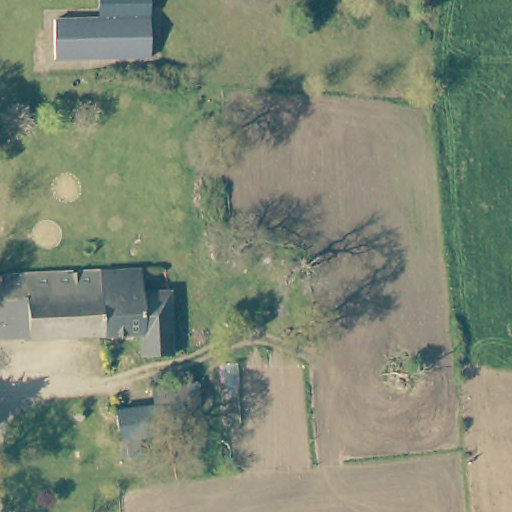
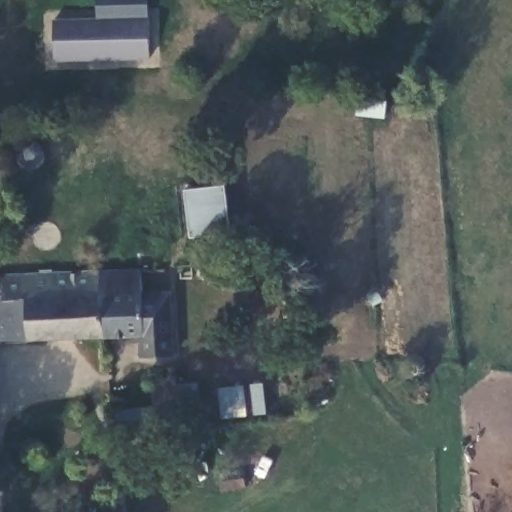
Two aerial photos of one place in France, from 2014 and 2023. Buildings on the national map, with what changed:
unchanged [(95,0),(145,0),(145,19),(95,19),(95,0)]
unchanged [(145,59),(50,59),(50,19),(95,19),(145,19),(145,59)]
new [(232,235),(192,239),(185,187),(226,183),(232,235)]
unchanged [(148,269),(150,294),(174,293),(177,354),(145,356),(144,333),(111,335),(105,271),(148,269)]
unchanged [(11,277),(28,276),(105,271),(111,335),(10,342),(0,343),(0,278),(11,277)]
unchanged [(109,457),(106,431),(141,428),(139,406),(184,403),(185,424),(164,426),(166,451),(109,457)]

